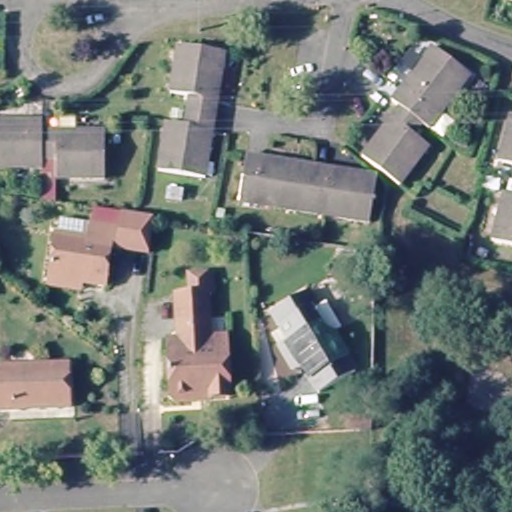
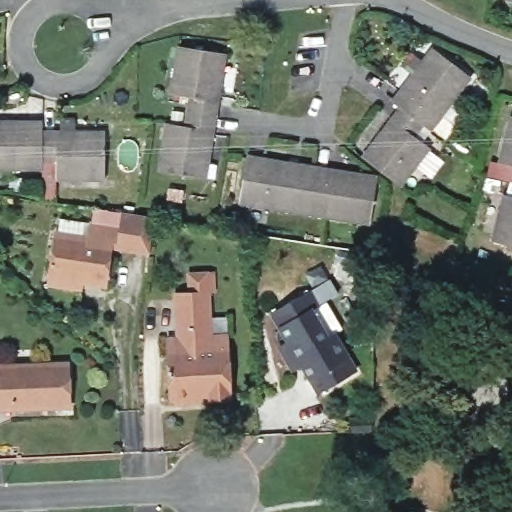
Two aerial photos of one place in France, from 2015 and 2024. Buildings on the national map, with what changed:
unchanged [(507,1),(507,0),(512,0),(512,2),(507,1)]
unchanged [(226,53),(220,99),(193,96),(189,124),(215,127),(207,180),(162,173),(184,46),(226,53)]
unchanged [(467,71),(483,84),(475,95),(467,90),(456,105),(439,129),(430,122),(423,131),(436,143),(403,186),(390,176),(367,158),(403,110),(395,102),(431,54),(435,56),(465,77),(467,71)]
unchanged [(502,165),(502,167),(496,166),(511,113),(512,113),(512,167),(502,165)]
unchanged [(41,133),(105,136),(102,178),(56,176),(59,161),(40,160),(39,171),(0,169),(0,119),(41,121),(41,133)]
unchanged [(379,176),(372,224),(244,204),(251,157),(379,176)]
unchanged [(492,240),(496,228),(505,196),(512,198),(512,246),(492,240)]
unchanged [(55,288),(55,280),(61,235),(93,241),(96,225),(128,230),(130,215),(156,219),(152,252),(120,247),(111,288),(87,285),(85,293),(55,288)]
unchanged [(192,397),(175,398),(166,390),(165,349),(165,337),(175,326),(174,291),(190,290),(189,272),(210,271),(220,271),(220,289),(211,290),(214,332),(229,332),(232,388),(227,390),(228,397),(192,397)]
unchanged [(292,351),(300,349),(290,317),(300,313),(296,297),(326,287),(332,307),(342,337),(355,381),(313,394),(303,361),(296,363),(292,351)]
unchanged [(75,408),(16,409),(0,409),(0,365),(73,364),(75,408)]
unchanged [(346,425),(368,425),(368,439),(347,440),(346,425)]

